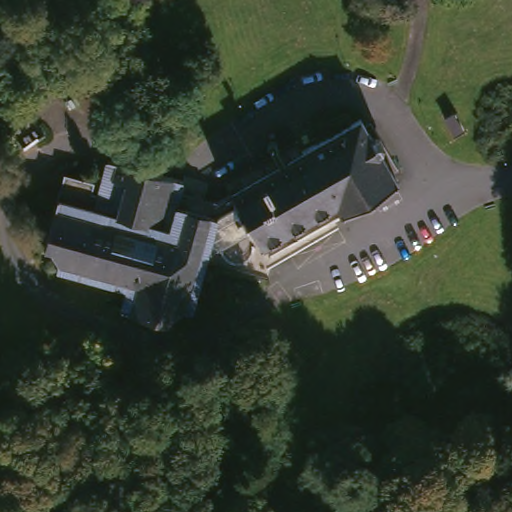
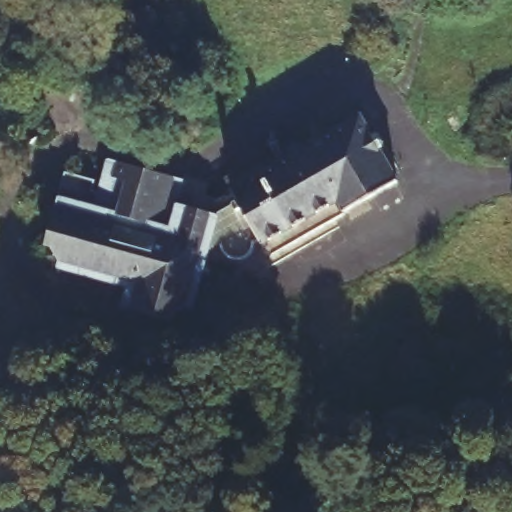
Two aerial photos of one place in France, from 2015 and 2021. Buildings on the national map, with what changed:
unchanged [(91,126),(65,84),(84,71),(112,114),(91,126)]
unchanged [(232,194),(306,151),(364,119),(400,182),(342,217),(338,209),(260,254),(259,260),(257,268),(254,273),(216,204),(216,203),(232,194)]
unchanged [(222,177),(295,134),(306,151),(232,194),(222,177)]
unchanged [(250,276),(244,279),(237,278),(231,277),(227,273),(222,268),(217,254),(210,252),(192,318),(171,329),(122,313),(126,294),(56,273),(57,266),(49,253),(44,249),(64,176),(92,186),(92,193),(99,195),(109,164),(185,184),(182,196),(202,203),(201,213),(216,204),(254,273),(250,276)]

